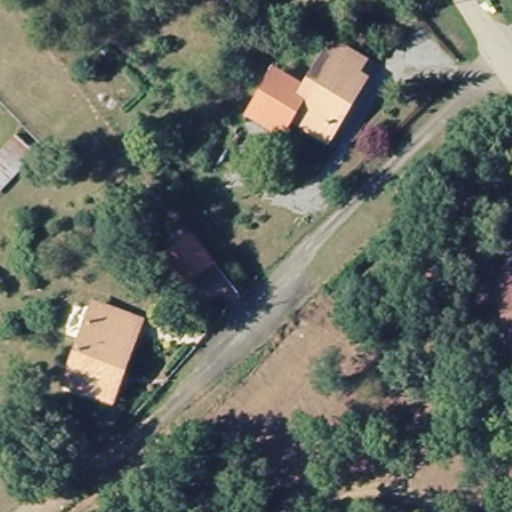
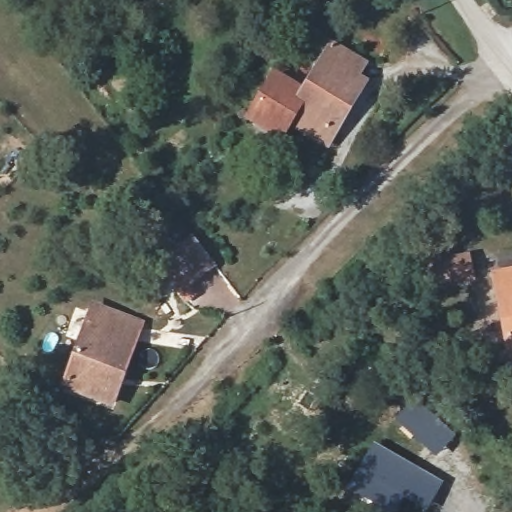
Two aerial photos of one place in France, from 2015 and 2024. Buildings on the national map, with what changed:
unchanged [(292,130),(285,146),(251,129),(273,84),(289,92),(298,75),(313,81),(329,45),(363,61),(356,78),(365,84),(340,133),(333,150),(292,130)]
unchanged [(34,165),(0,200),(0,156),(14,142),(34,165)]
unchanged [(192,304),(185,297),(157,265),(192,233),(219,266),(197,286),(205,295),(192,304)]
unchanged [(445,295),(443,269),(487,261),(491,287),(445,295)]
unchanged [(497,275),(512,273),(512,350),(497,275)]
unchanged [(107,413),(61,392),(99,311),(145,333),(107,413)]
new [(415,398),(455,434),(436,457),(395,420),(415,398)]
new [(372,441),(443,482),(427,512),(425,512),(405,500),(397,512),(378,512),(345,489),(372,441)]

